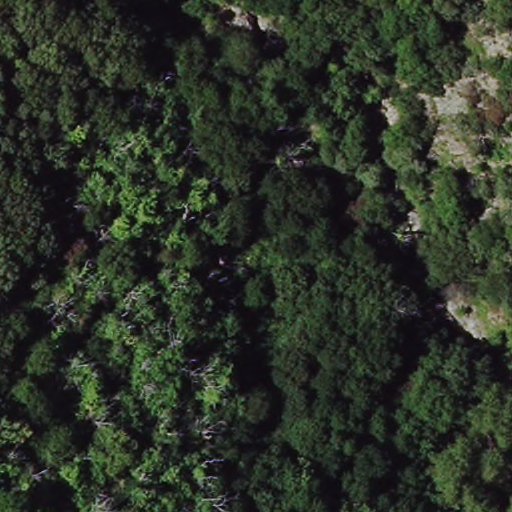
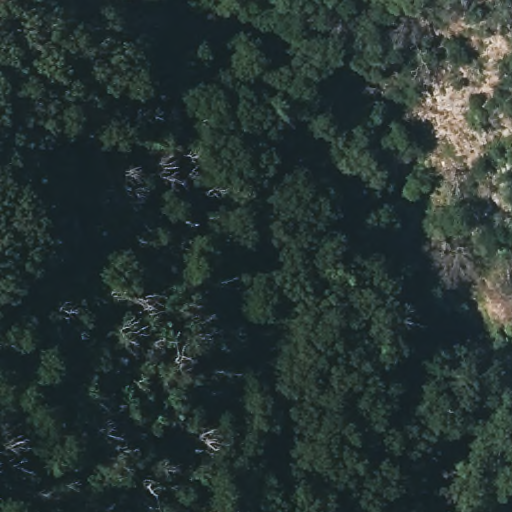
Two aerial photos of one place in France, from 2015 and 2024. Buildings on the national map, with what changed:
unchanged [(210,127),(209,159),(177,158),(177,126),(210,127)]

